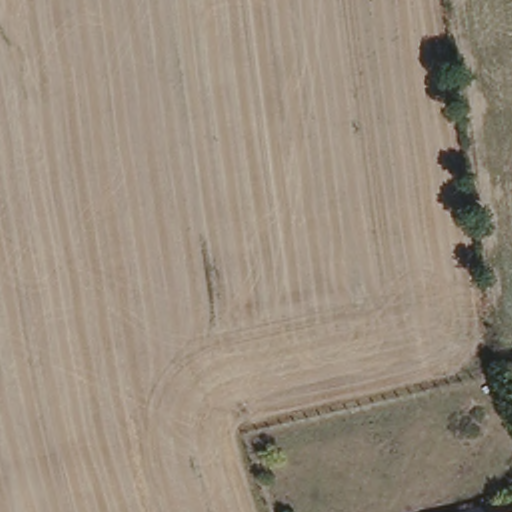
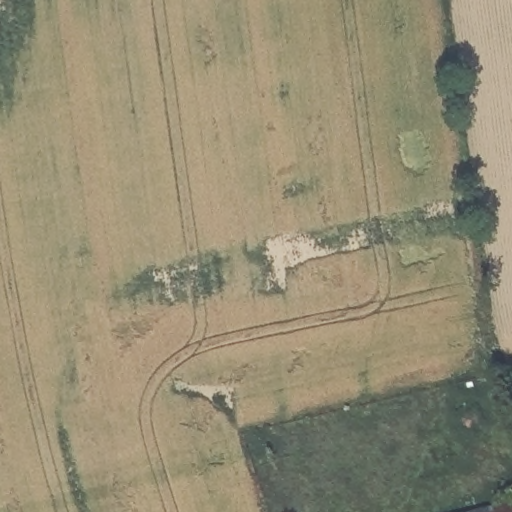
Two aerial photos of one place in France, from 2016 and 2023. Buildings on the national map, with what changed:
unchanged [(490,495),(512,487),(512,512),(496,512),(490,495)]
unchanged [(496,512),(436,512),(490,495),(496,512)]

